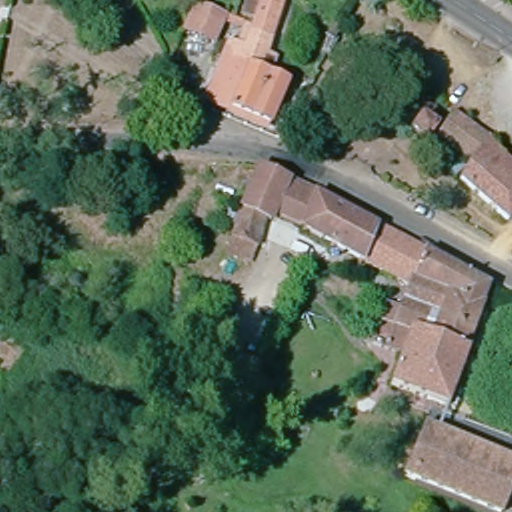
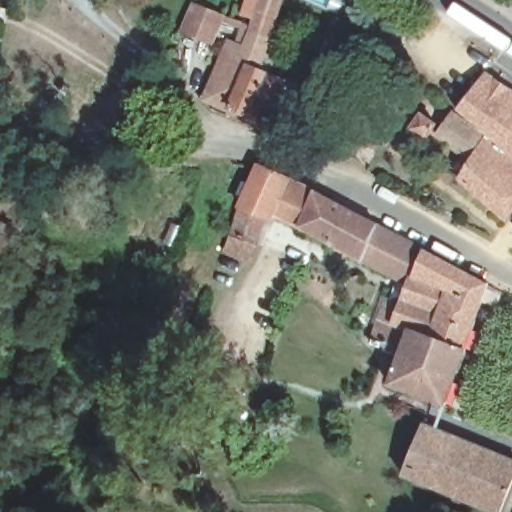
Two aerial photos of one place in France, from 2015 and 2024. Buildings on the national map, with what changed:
unchanged [(267,68),(283,75),(268,119),(210,95),(219,71),(230,75),(235,65),(224,63),(239,15),(252,19),(257,0),(283,0),(265,52),(271,55),(267,68)]
unchanged [(189,4),(216,14),(209,40),(176,31),(189,4)]
new [(456,112),(486,73),(512,91),(512,149),(492,133),(456,112)]
unchanged [(492,133),(512,149),(512,200),(509,204),(458,175),(470,152),(433,130),(446,105),(455,111),(492,133)]
unchanged [(382,150),(397,120),(420,130),(406,160),(382,150)]
unchanged [(464,351),(443,406),(430,401),(389,385),(408,331),(391,323),(406,283),(295,224),(291,229),(283,245),(277,258),(250,245),(254,240),(230,228),(257,165),(285,179),(285,182),(307,193),(310,190),(482,283),(458,348),(464,351)]
unchanged [(412,452),(423,425),(436,430),(512,459),(512,482),(500,512),(494,512),(416,484),(402,478),(412,452)]

